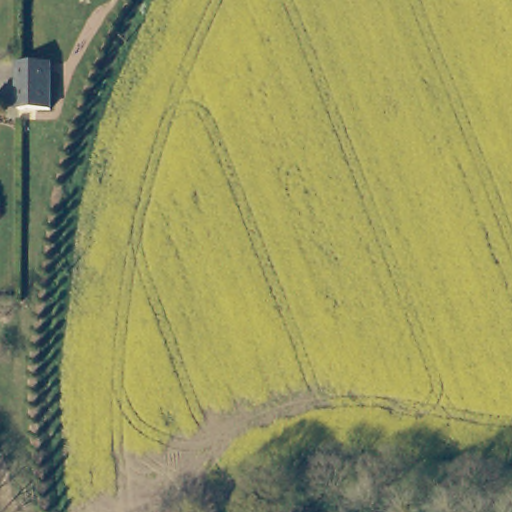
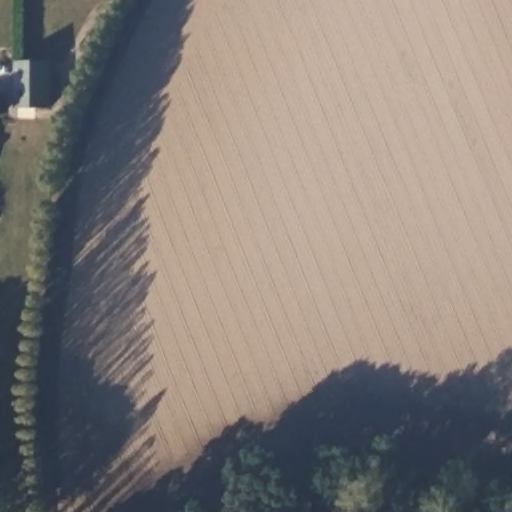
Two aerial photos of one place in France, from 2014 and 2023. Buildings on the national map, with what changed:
unchanged [(18,46),(22,46),(50,48),(47,121),(22,120),(16,120),(18,46)]

